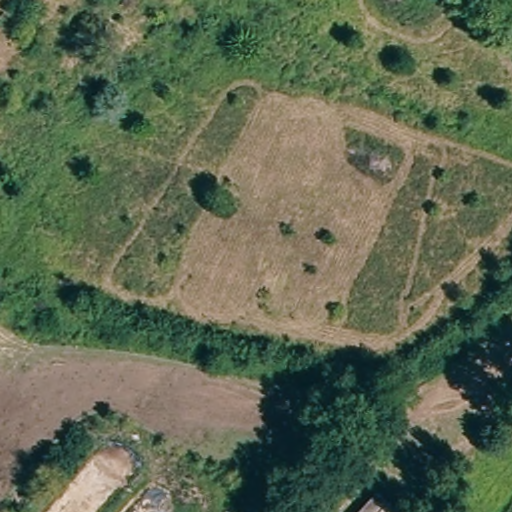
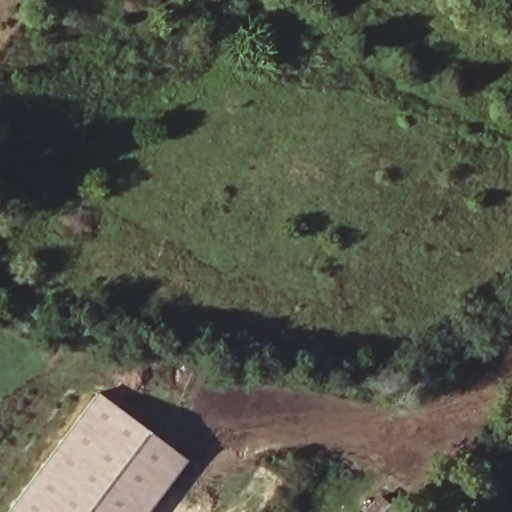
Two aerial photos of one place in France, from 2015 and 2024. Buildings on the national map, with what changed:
demolished [(493,372),(512,352),(512,385),(493,372)]
new [(185,457),(143,512),(8,512),(99,392),(185,457)]
unchanged [(396,512),(354,512),(372,492),(396,512)]

